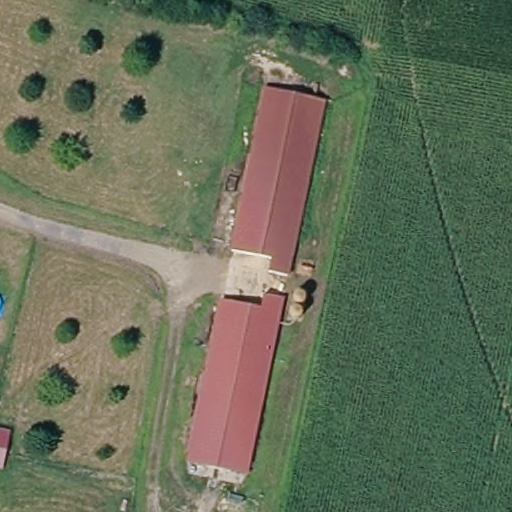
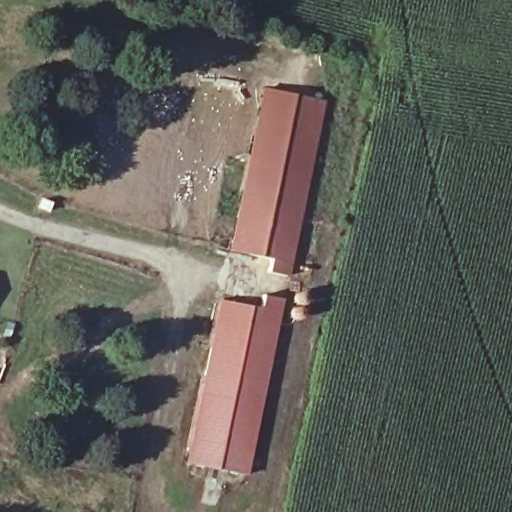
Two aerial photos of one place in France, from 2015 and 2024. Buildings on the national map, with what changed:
unchanged [(329,103),(294,276),(274,272),(277,257),(237,249),(269,91),(329,103)]
unchanged [(202,403),(204,393),(221,307),(256,313),(258,301),(284,305),(264,405),(262,415),(202,403)]
unchanged [(249,478),(190,467),(202,403),(262,415),(249,478)]

